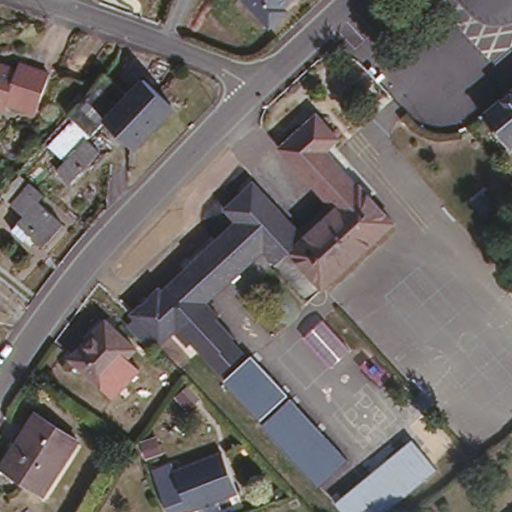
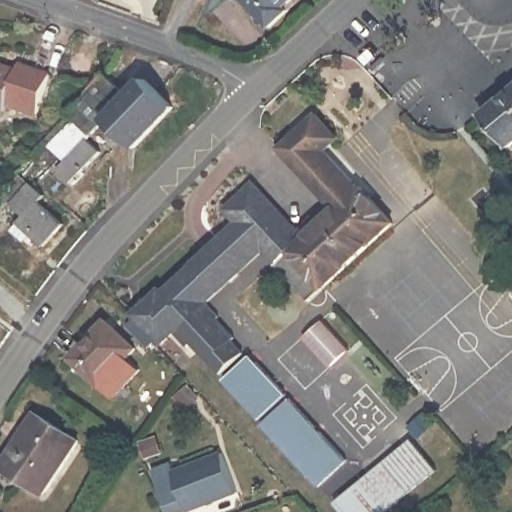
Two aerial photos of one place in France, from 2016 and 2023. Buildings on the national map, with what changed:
unchanged [(246,0),(293,0),(267,24),(246,0)]
unchanged [(20,65),(52,74),(40,117),(9,109),(7,114),(0,112),(0,64),(19,70),(20,65)]
unchanged [(130,149),(108,130),(70,181),(32,151),(97,67),(119,89),(139,72),(172,106),(130,149)]
unchanged [(497,135),(470,102),(512,67),(512,123),(497,135)]
unchanged [(172,325),(149,343),(122,310),(227,219),(215,204),(247,175),(292,227),(322,199),(295,170),(271,145),(312,108),(337,133),(324,147),(393,220),(305,304),(257,248),(199,300),(345,458),(315,488),(172,325)]
unchanged [(35,247),(21,235),(31,224),(19,213),(3,199),(22,177),(54,202),(46,211),(70,232),(51,252),(39,242),(35,247)]
unchanged [(62,357),(92,317),(122,340),(109,358),(127,372),(112,395),(92,380),(62,357)]
unchanged [(401,378),(380,398),(346,361),(367,342),(401,378)]
unchanged [(0,451),(28,410),(70,440),(35,490),(0,466),(0,451)]
unchanged [(414,440),(437,466),(382,512),(349,512),(340,501),(414,440)]
unchanged [(219,452),(233,494),(187,510),(186,508),(175,512),(168,512),(153,471),(171,465),(172,469),(219,452)]

